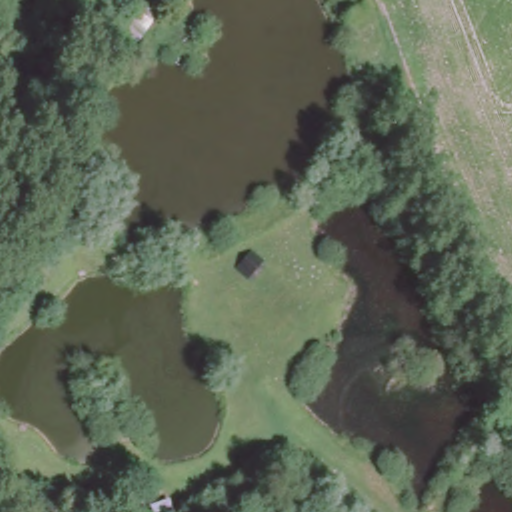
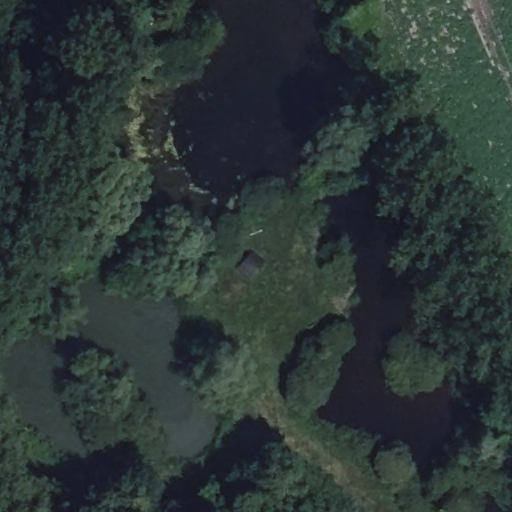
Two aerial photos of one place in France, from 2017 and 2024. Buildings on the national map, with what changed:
unchanged [(161,11),(137,42),(120,25),(142,0),(148,0),(161,11)]

